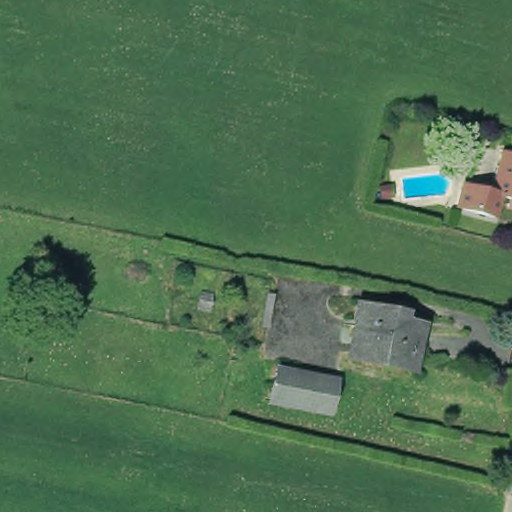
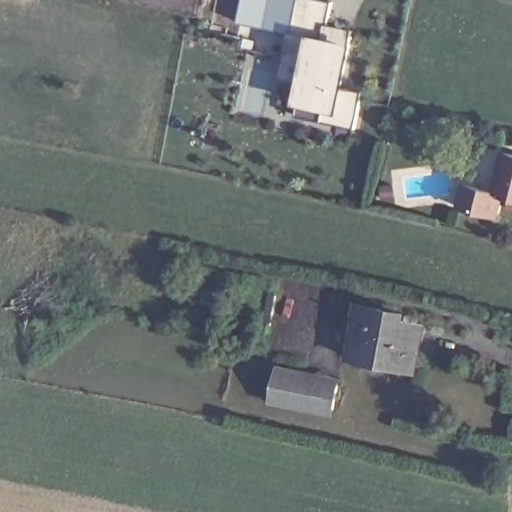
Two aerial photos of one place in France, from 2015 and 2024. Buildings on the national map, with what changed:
new [(333,2),(328,25),(354,30),(353,45),(344,88),(363,92),(354,130),(296,117),(300,105),(293,104),(298,82),(279,78),(289,31),(238,21),(242,0),(321,0),(333,2)]
unchanged [(494,192),(504,153),(512,155),(512,201),(504,200),(499,219),(459,209),(465,185),(494,192)]
unchanged [(214,296),(211,307),(201,305),(203,293),(214,296)]
unchanged [(264,323),(270,294),(277,296),(271,325),(264,323)]
unchanged [(348,309),(392,318),(390,328),(409,332),(401,374),(344,362),(351,327),(344,325),(348,309)]
unchanged [(326,418),(264,407),(271,365),(334,376),(326,418)]

